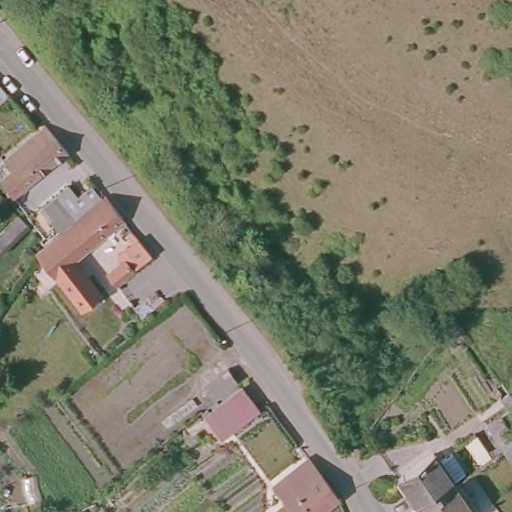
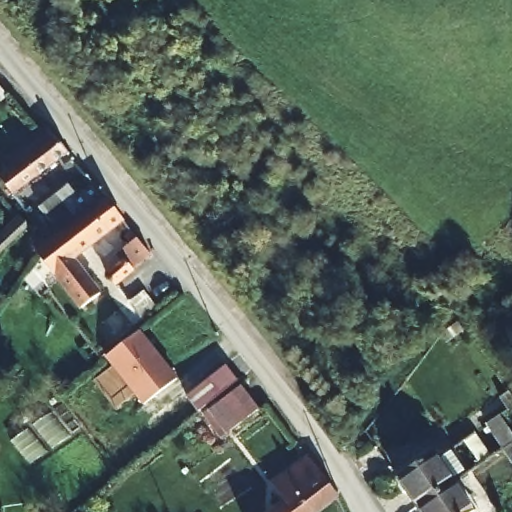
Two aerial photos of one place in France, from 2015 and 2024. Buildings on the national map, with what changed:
unchanged [(2,92),(0,95),(0,90),(2,92)]
unchanged [(12,199),(0,184),(0,165),(47,126),(70,154),(12,199)]
unchanged [(57,225),(39,201),(65,179),(75,191),(90,179),(100,192),(57,225)]
unchanged [(52,238),(49,233),(56,227),(60,231),(103,196),(119,215),(70,255),(99,291),(85,302),(81,306),(52,270),(47,273),(33,255),(36,250),(52,238)]
unchanged [(20,215),(28,225),(0,252),(0,234),(20,215)]
unchanged [(126,239),(121,232),(128,227),(148,252),(135,262),(120,244),(126,239)]
unchanged [(129,268),(112,281),(102,268),(120,254),(130,266),(129,268)]
new [(177,376),(143,405),(104,358),(140,330),(177,376)]
unchanged [(210,401),(200,390),(222,372),(232,383),(210,401)]
unchanged [(203,413),(206,416),(237,391),(255,413),(224,439),(207,418),(201,423),(197,418),(203,413)]
unchanged [(512,444),(498,453),(479,427),(495,417),(512,439),(512,444)]
unchanged [(473,470),(455,445),(467,436),(486,462),(473,470)]
unchanged [(415,510),(394,478),(429,454),(450,486),(415,510)]
unchanged [(308,512),(268,512),(282,501),(269,484),(305,456),(318,473),(333,493),(308,512)]
unchanged [(450,486),(468,512),(417,512),(415,510),(450,486)]

